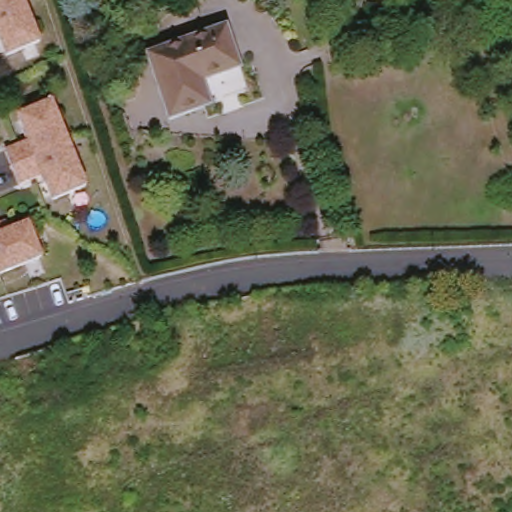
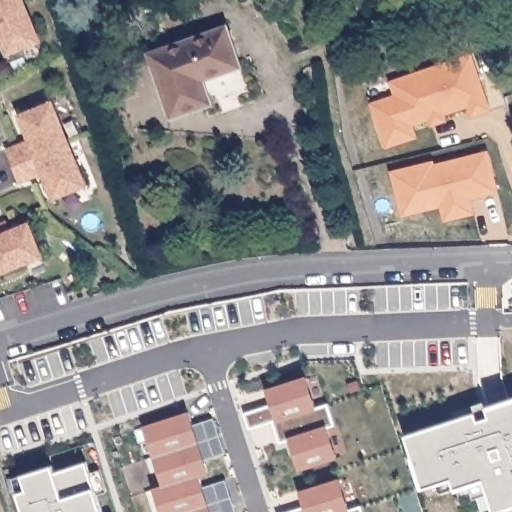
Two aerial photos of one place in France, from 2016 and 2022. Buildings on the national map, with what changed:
unchanged [(21,0),(0,9),(0,0),(21,0)]
unchanged [(12,54),(4,34),(5,34),(3,28),(0,30),(0,9),(21,0),(27,0),(33,15),(35,15),(46,40),(12,54)]
unchanged [(241,67),(203,80),(211,104),(170,118),(148,52),(227,26),(241,67)]
new [(487,125),(468,129),(466,118),(440,124),(437,114),(425,116),(426,121),(375,131),(370,103),(395,98),(392,84),(475,67),(487,125)]
unchanged [(12,164),(6,149),(31,139),(29,134),(27,134),(19,114),(52,101),(63,126),(61,127),(67,142),(12,164)]
new [(425,116),(437,114),(441,130),(428,133),(426,121),(425,116)]
new [(410,143),(379,149),(375,131),(407,125),(410,143)]
unchanged [(75,160),(76,159),(87,185),(53,199),(45,179),(47,178),(45,173),(20,183),(12,164),(67,142),(75,160)]
new [(447,219),(444,205),(443,201),(405,211),(393,168),(435,157),(435,160),(490,147),(500,190),(482,194),(482,192),(472,194),(473,198),(476,211),(447,219)]
unchanged [(45,260),(1,277),(0,274),(0,226),(2,231),(10,228),(12,234),(31,226),(45,260)]
new [(317,406),(329,402),(335,424),(327,428),(337,457),(300,468),(290,441),(280,443),(274,422),(248,429),(243,412),(272,402),(267,388),(305,375),(317,406)]
new [(485,478),(456,487),(453,477),(423,487),(406,435),(475,411),(478,419),(490,416),(487,405),(512,397),(512,512),(495,512),(485,478)]
new [(208,474),(200,478),(211,512),(161,512),(153,487),(162,484),(144,426),(188,411),(208,474)]
new [(93,487),(101,512),(25,512),(19,493),(27,490),(22,474),(51,465),(55,473),(86,462),(93,487)]
new [(350,508),(362,505),(365,512),(284,512),(305,506),(301,488),(340,478),(350,508)]

